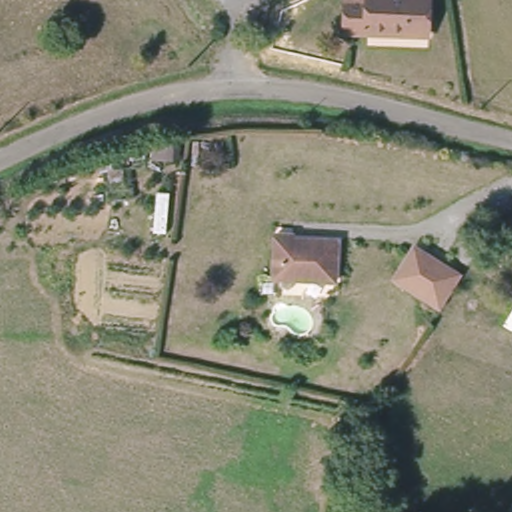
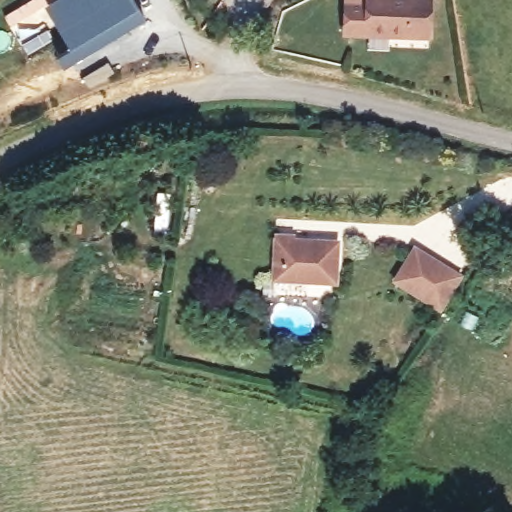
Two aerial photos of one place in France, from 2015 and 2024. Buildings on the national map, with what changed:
new [(147,19),(64,68),(57,56),(70,48),(45,4),(52,0),(135,0),(140,8),(147,19)]
unchanged [(348,32),(348,0),(429,0),(429,31),(348,32)]
unchanged [(179,130),(181,146),(155,149),(152,134),(179,130)]
unchanged [(292,233),(292,236),(337,242),(332,281),(272,275),(276,232),(292,233)]
unchanged [(399,277),(422,248),(465,279),(441,309),(399,277)]

